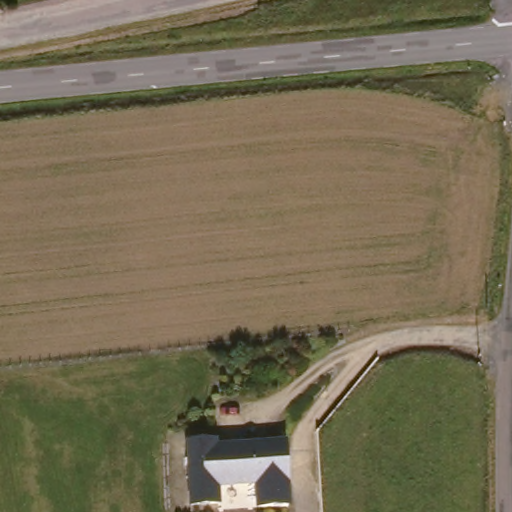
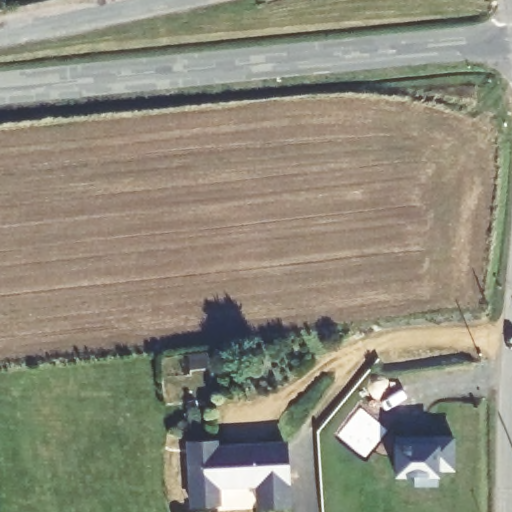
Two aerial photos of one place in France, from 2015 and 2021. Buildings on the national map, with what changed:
unchanged [(182,440),(217,439),(218,444),(281,440),(286,507),(253,507),(253,486),(216,487),(216,506),(186,505),(182,440)]
new [(427,441),(450,440),(452,472),(437,473),(437,490),(414,490),(413,481),(395,482),(393,442),(413,442),(427,441)]

